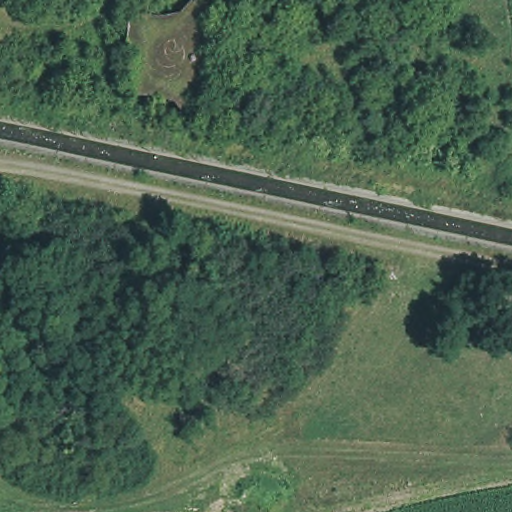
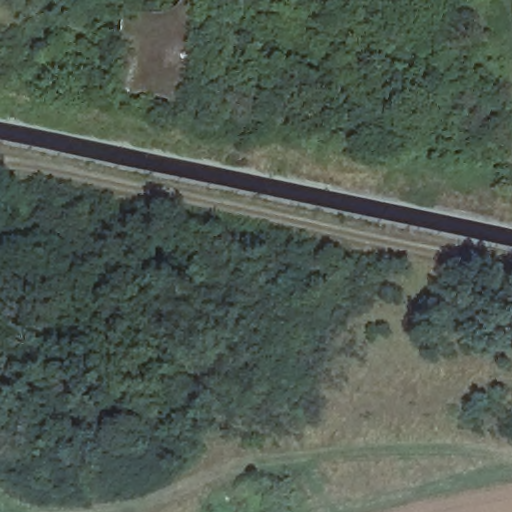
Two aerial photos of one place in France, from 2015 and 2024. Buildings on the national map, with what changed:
unchanged [(130,91),(133,51),(123,49),(129,15),(178,6),(186,0),(207,0),(216,5),(205,29),(193,96),(130,91)]

